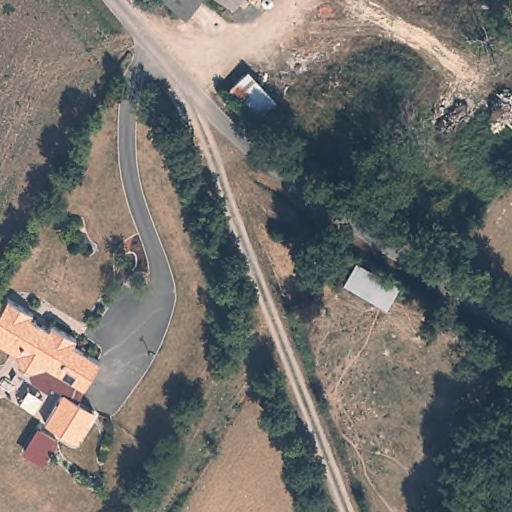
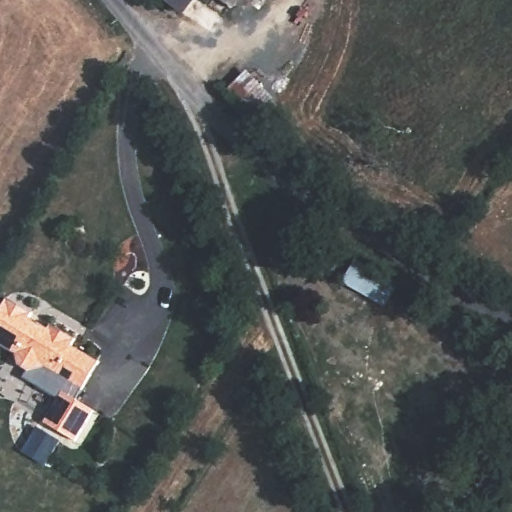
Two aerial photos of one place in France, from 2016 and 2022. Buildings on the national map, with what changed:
unchanged [(223,23),(197,0),(260,0),(249,11),(240,4),(223,23)]
unchanged [(34,315),(52,328),(56,321),(81,339),(79,343),(105,360),(78,398),(95,410),(76,438),(46,419),(66,390),(54,382),(50,389),(34,378),(31,371),(19,364),(18,352),(0,341),(0,318),(15,295),(38,310),(34,315)]

